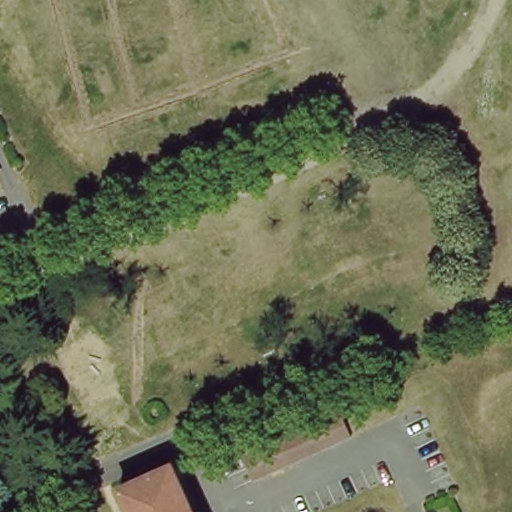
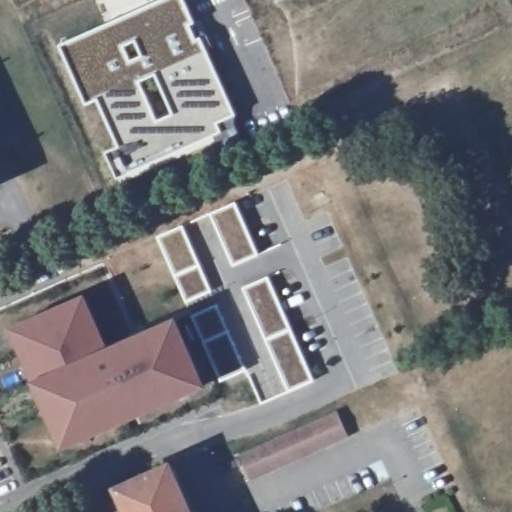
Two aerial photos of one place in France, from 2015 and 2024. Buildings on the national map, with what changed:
new [(161,0),(184,0),(195,23),(191,26),(198,39),(201,38),(236,116),(218,124),(223,131),(119,178),(108,153),(121,147),(99,99),(86,105),(61,45),(161,0)]
new [(235,203),(258,254),(234,265),(211,213),(235,203)]
new [(182,225),(213,293),(188,304),(158,237),(182,225)]
new [(268,277),(314,382),(290,393),(243,288),(268,277)]
new [(87,294),(108,347),(178,316),(208,387),(63,450),(31,381),(10,327),(87,294)]
new [(218,306),(246,370),(223,381),(195,317),(218,306)]
unchanged [(338,412),(349,437),(251,480),(240,455),(338,412)]
unchanged [(173,472),(191,512),(123,512),(122,510),(126,508),(120,495),(118,488),(171,464),(173,472)]

